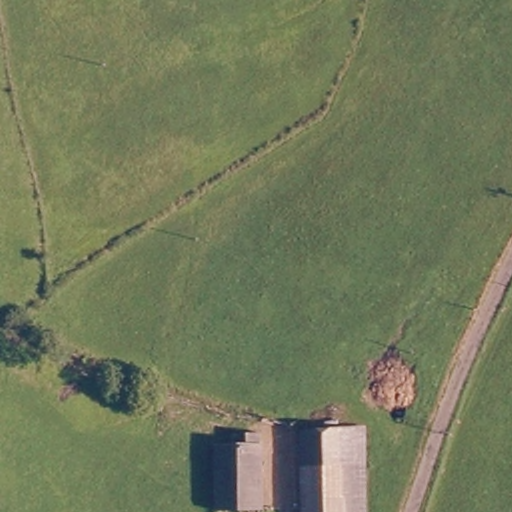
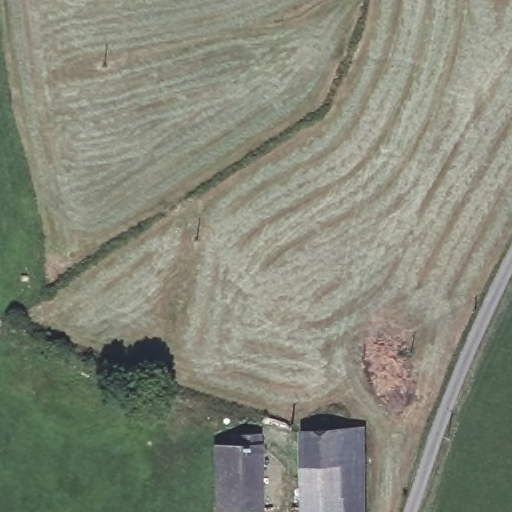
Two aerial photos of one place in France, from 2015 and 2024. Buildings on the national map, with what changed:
unchanged [(371,512),(307,512),(301,433),(361,427),(371,512)]
unchanged [(230,448),(229,438),(256,436),(265,512),(231,512),(222,511),(217,450),(230,448)]

